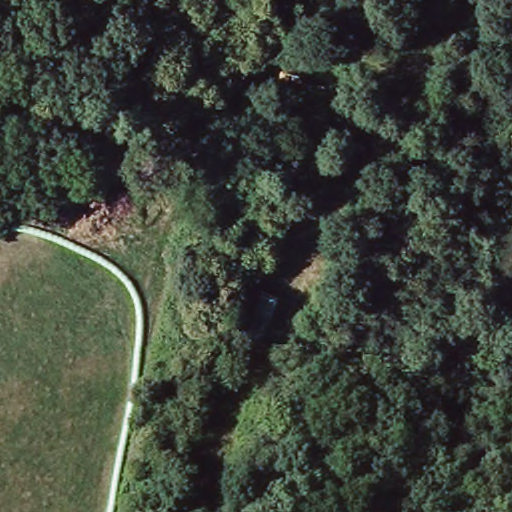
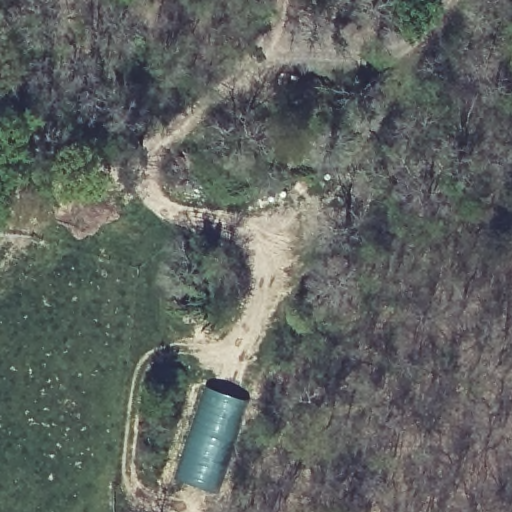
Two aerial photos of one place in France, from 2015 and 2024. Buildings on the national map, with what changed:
new [(210,489),(190,482),(185,458),(205,386),(226,392),(224,399),(241,403),(228,446),(210,489)]

